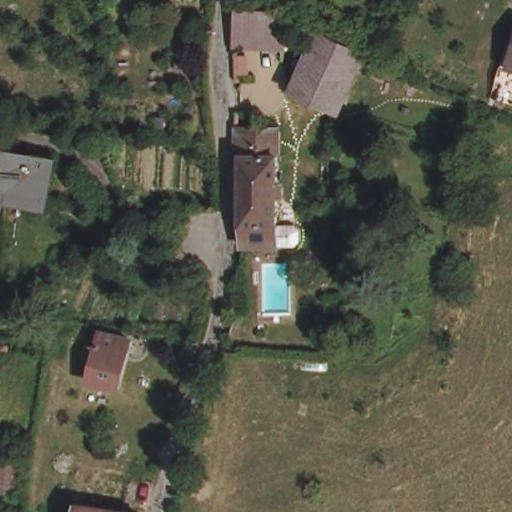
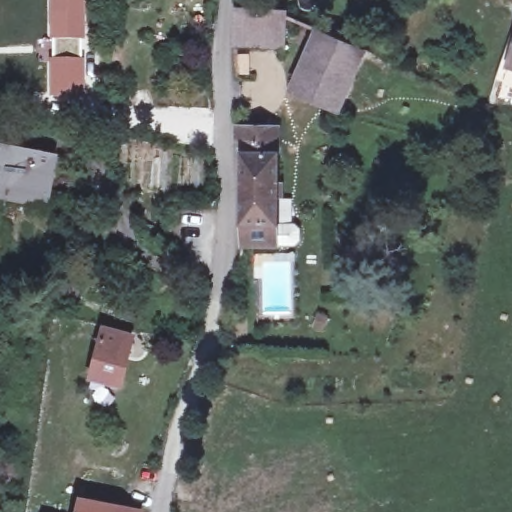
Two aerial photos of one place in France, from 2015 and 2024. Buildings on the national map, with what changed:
new [(47,0),(86,0),(86,42),(47,42),(47,0)]
unchanged [(271,10),(271,11),(271,12),(287,14),(288,15),(286,49),(235,46),(238,7),(271,10)]
unchanged [(293,94),(296,87),(321,30),(365,49),(340,106),(337,114),(293,94)]
new [(48,57),(86,57),(86,104),(46,101),(48,57)]
unchanged [(305,237),(306,249),(301,254),(283,254),(283,256),(248,256),(248,156),(242,155),(242,137),(277,137),(277,164),(284,165),(283,232),(300,232),(305,237)]
unchanged [(0,196),(0,155),(54,165),(47,205),(0,196)]
unchanged [(318,313),(328,316),(324,330),(314,327),(318,313)]
unchanged [(131,340),(118,387),(89,380),(103,332),(131,340)]
unchanged [(17,495),(0,493),(0,453),(19,454),(17,495)]
unchanged [(130,512),(75,512),(78,503),(130,512)]

